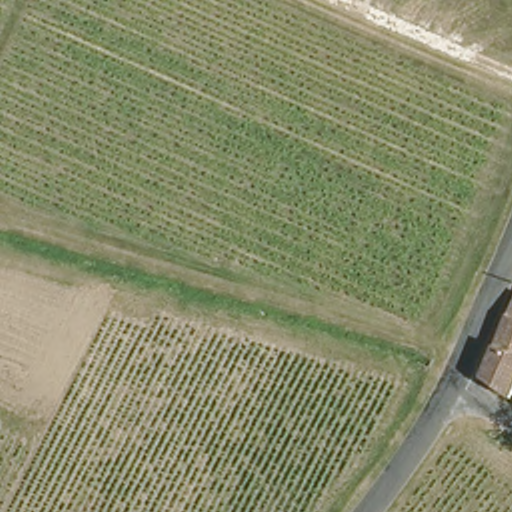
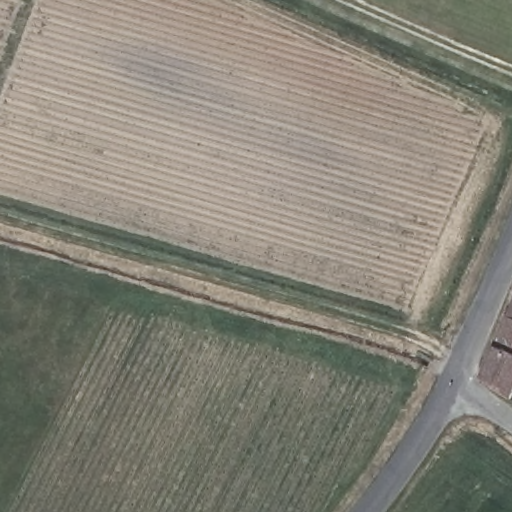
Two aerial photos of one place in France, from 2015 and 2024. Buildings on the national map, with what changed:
unchanged [(485,373),(512,307),(512,386),(485,373)]

